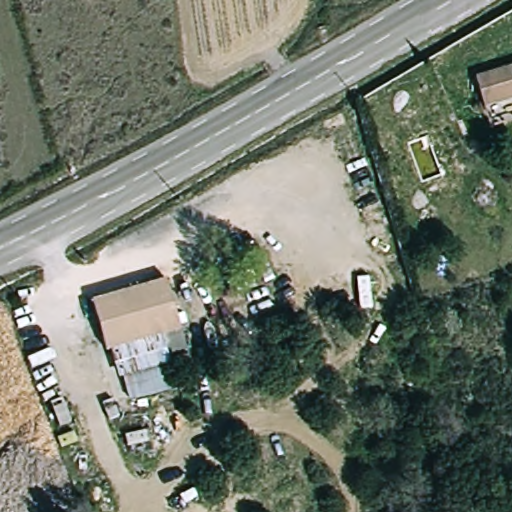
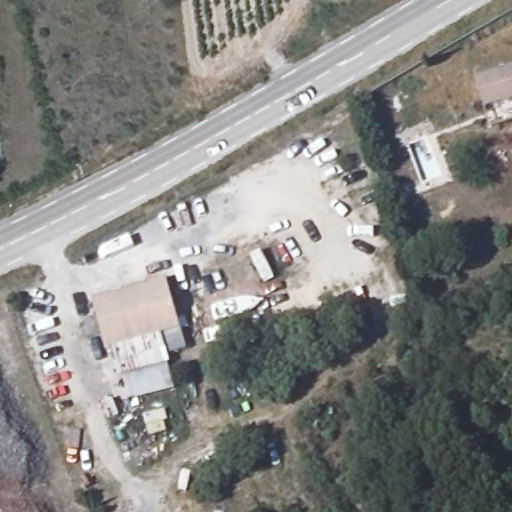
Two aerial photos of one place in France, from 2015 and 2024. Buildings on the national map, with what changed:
unchanged [(475,76),(512,65),(512,100),(485,107),(475,76)]
unchanged [(89,300),(166,277),(188,351),(162,356),(167,363),(122,375),(115,376),(89,300)]
unchanged [(167,363),(171,390),(128,397),(122,375),(167,363)]

